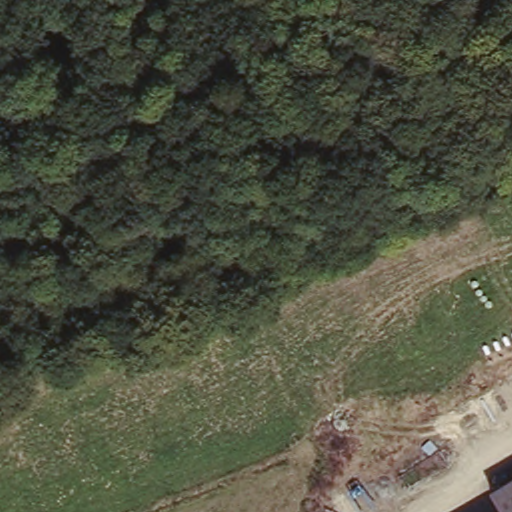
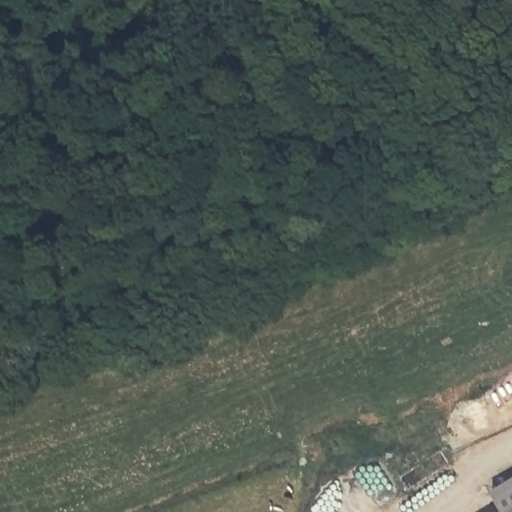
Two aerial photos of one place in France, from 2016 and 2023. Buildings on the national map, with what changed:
unchanged [(489,491),(512,477),(512,512),(500,512),(501,511),(489,491)]

